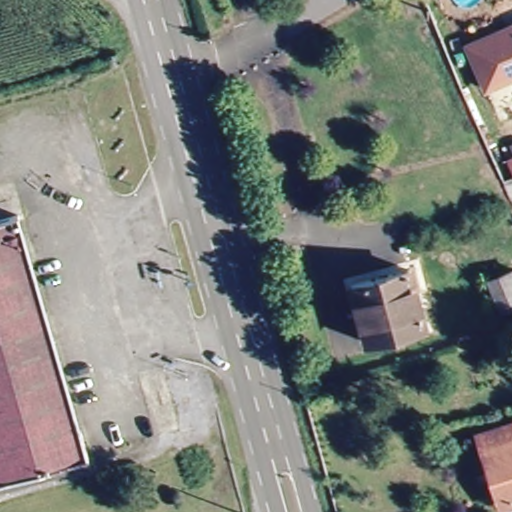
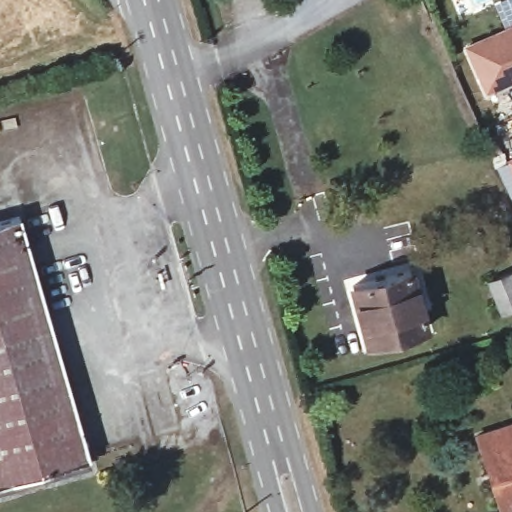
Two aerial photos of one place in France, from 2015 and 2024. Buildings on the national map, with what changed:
unchanged [(468,49),(512,31),(512,83),(487,94),(468,49)]
unchanged [(22,218),(89,454),(0,482),(0,224),(22,218)]
unchanged [(487,284),(510,269),(512,272),(512,311),(504,315),(487,284)]
unchanged [(371,345),(356,289),(410,274),(427,329),(371,345)]
unchanged [(485,444),(512,436),(512,512),(507,512),(485,444)]

